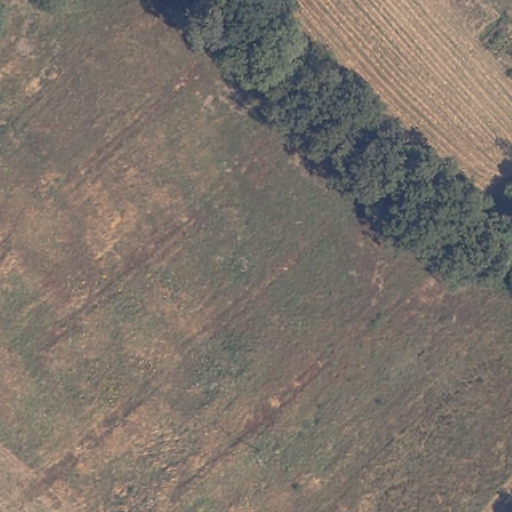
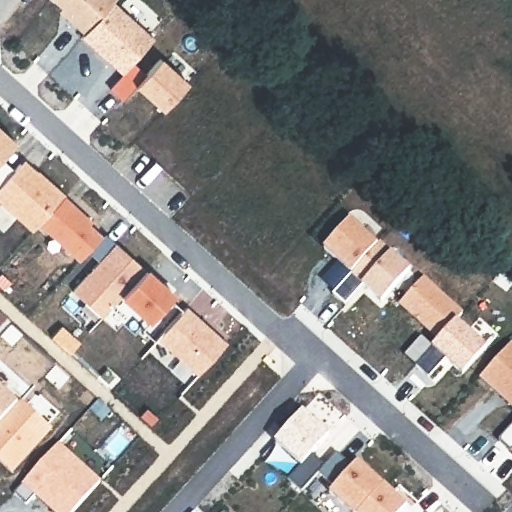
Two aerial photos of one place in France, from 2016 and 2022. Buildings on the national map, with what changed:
new [(112,2),(83,33),(67,18),(69,15),(52,0),(114,0),(112,2)]
new [(83,33),(112,2),(153,38),(122,73),(80,37),(83,33)]
new [(132,63),(145,74),(159,58),(186,83),(162,110),(135,86),(121,100),(109,89),(132,63)]
new [(14,142),(0,158),(0,129),(14,142)]
new [(9,174),(19,163),(32,175),(36,170),(64,195),(63,196),(38,224),(31,231),(0,203),(0,184),(9,174)]
new [(9,174),(0,184),(0,166),(9,174)]
new [(87,251),(79,261),(38,224),(63,196),(91,221),(88,224),(101,236),(104,233),(115,243),(144,270),(120,296),(101,318),(71,291),(98,261),(87,251)]
new [(349,220),(377,246),(351,274),(323,249),(349,220)]
new [(351,274),(377,246),(379,243),(410,271),(381,302),(363,286),(345,306),(333,295),(351,274)]
new [(144,270),(173,296),(149,322),(120,296),(144,270)]
new [(422,279),(462,315),(456,322),(439,340),(399,304),(422,279)]
new [(185,307),(226,343),(197,375),(157,338),(185,307)]
new [(439,340),(456,322),(486,348),(462,375),(445,359),(428,378),(415,366),(439,340)]
new [(512,347),(512,407),(480,378),(510,345),(512,347)]
new [(18,404),(0,424),(0,388),(18,404)]
new [(18,404),(21,402),(52,431),(12,475),(0,464),(0,424),(18,404)]
new [(302,412),(329,436),(312,455),(325,467),(318,474),(301,492),(288,480),(301,465),(275,442),(302,412)]
new [(512,451),(511,452),(498,441),(512,426),(512,451)]
new [(51,512),(33,496),(25,505),(15,494),(22,485),(59,445),(99,482),(72,512),(51,512)]
new [(337,453),(352,468),(357,462),(383,485),(359,512),(350,512),(329,493),(334,488),(318,474),(325,467),(337,453)]
new [(407,507),(402,512),(359,512),(383,485),(407,507)]

